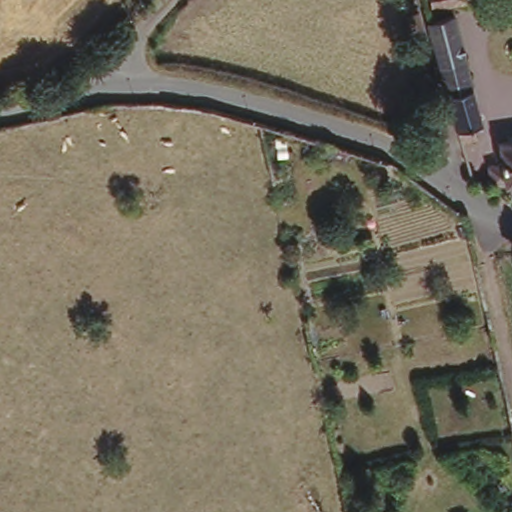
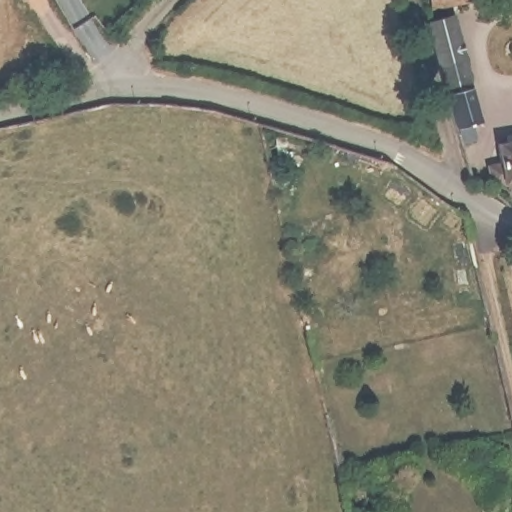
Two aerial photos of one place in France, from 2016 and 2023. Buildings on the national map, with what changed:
unchanged [(459,10),(487,115),(479,117),(483,130),(463,136),(430,14),(459,10)]
unchanged [(507,142),(512,142),(512,181),(499,182),(498,163),(509,161),(507,142)]

